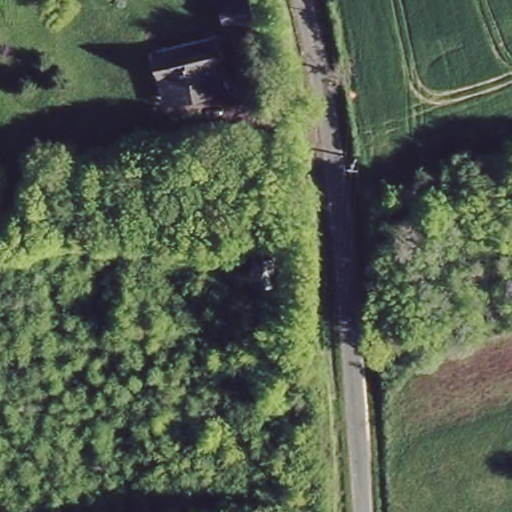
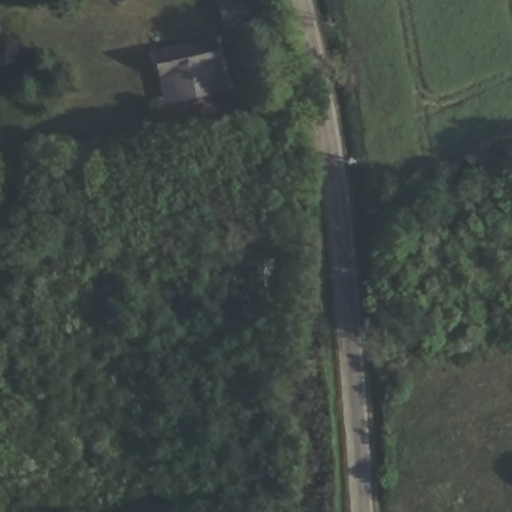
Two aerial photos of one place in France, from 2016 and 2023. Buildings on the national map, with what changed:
unchanged [(243,0),(247,19),(219,25),(214,0),(234,0),(234,2),(243,0)]
unchanged [(204,44),(209,67),(202,68),(209,97),(165,105),(160,82),(152,84),(146,56),(204,44)]
unchanged [(240,257),(270,257),(270,291),(244,292),(240,257)]

